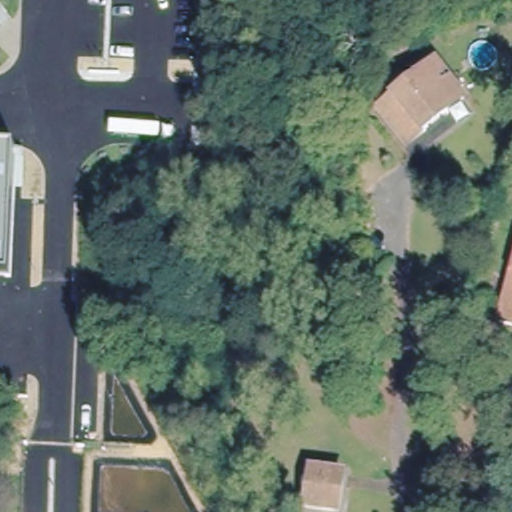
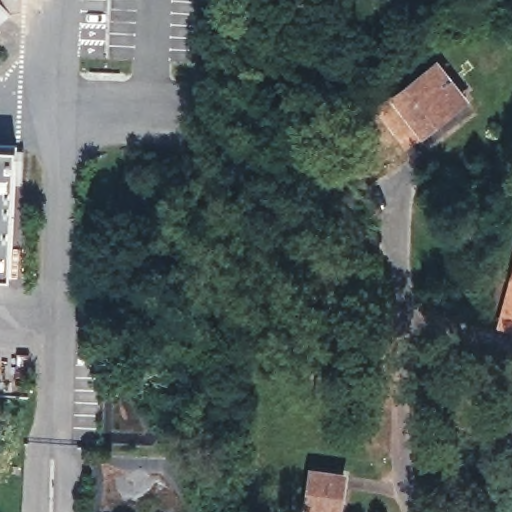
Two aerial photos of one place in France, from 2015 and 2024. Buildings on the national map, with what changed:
unchanged [(394,93),(434,61),(453,84),(463,96),(448,109),(408,141),(387,114),(379,104),(394,93)]
unchanged [(9,271),(0,271),(0,143),(16,144),(9,271)]
unchanged [(497,320),(512,258),(512,323),(497,320)]
unchanged [(342,509),(309,504),(313,467),(346,471),(342,509)]

